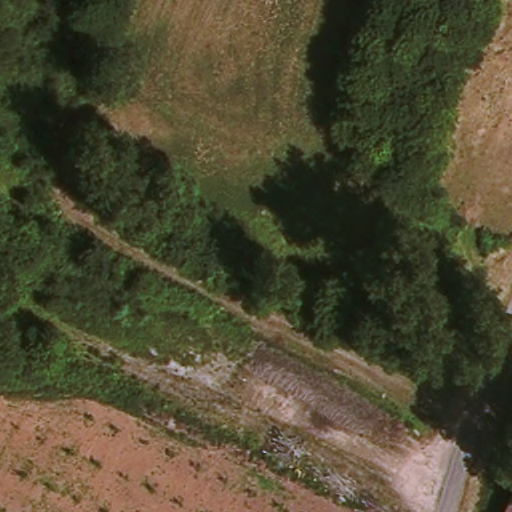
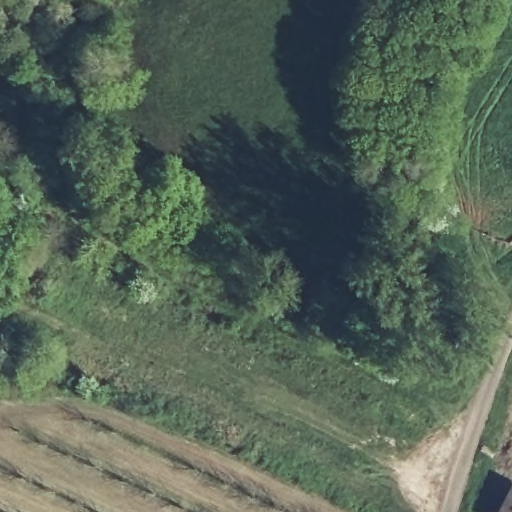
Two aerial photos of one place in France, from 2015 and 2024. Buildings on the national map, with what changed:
unchanged [(512,512),(508,512),(512,505),(512,512)]

